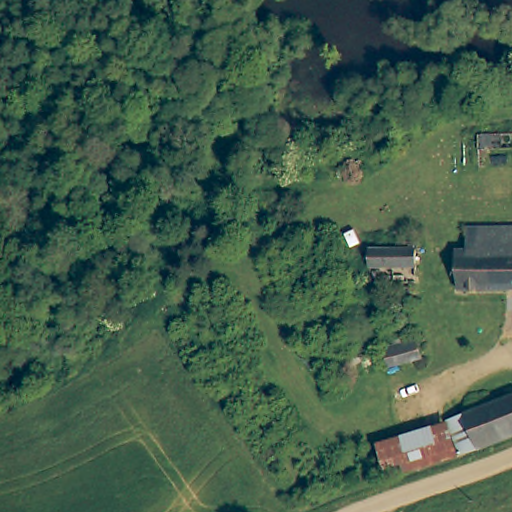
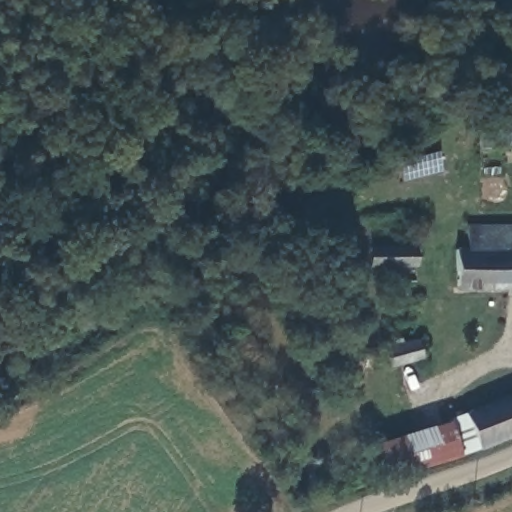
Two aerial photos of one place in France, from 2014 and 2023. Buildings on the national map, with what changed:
unchanged [(477,134),(512,134),(512,148),(477,149),(477,134)]
unchanged [(466,250),(466,229),(512,228),(512,284),(452,285),(452,250),(466,250)]
unchanged [(369,250),(412,250),(412,267),(368,266),(369,250)]
unchanged [(416,341),(421,357),(387,365),(383,348),(416,341)]
unchanged [(465,417),(512,398),(512,439),(477,453),(457,460),(445,424),(465,417)]
unchanged [(440,427),(452,461),(387,481),(376,451),(440,427)]

